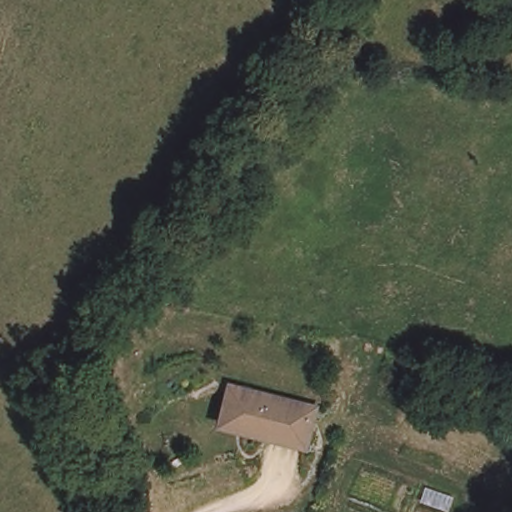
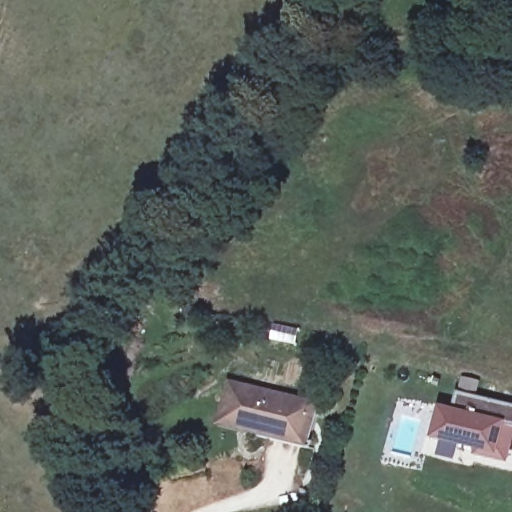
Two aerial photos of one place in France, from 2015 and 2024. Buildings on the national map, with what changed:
unchanged [(305,441),(303,447),(257,435),(257,430),(225,422),(231,398),(233,388),(241,390),(313,408),(305,441)]
new [(473,451),(431,440),(439,406),(452,409),(457,393),(512,405),(512,447),(508,463),(472,456),(473,451)]

